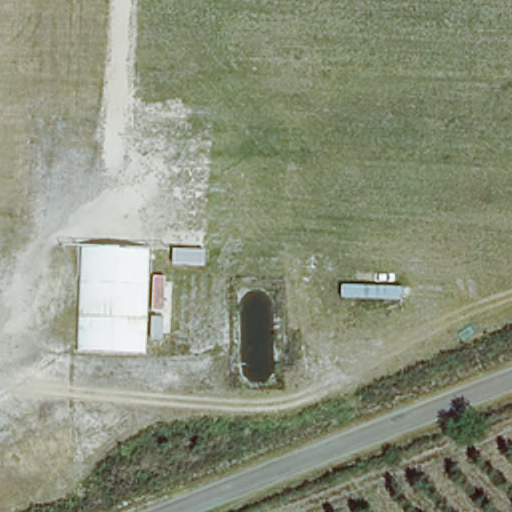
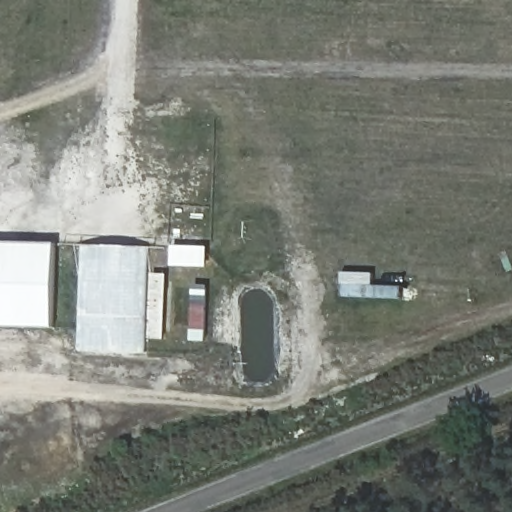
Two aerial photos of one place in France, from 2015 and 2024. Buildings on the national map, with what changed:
new [(55,246),(53,328),(0,327),(0,245),(55,246)]
unchanged [(142,354),(75,351),(79,247),(144,249),(142,354)]

